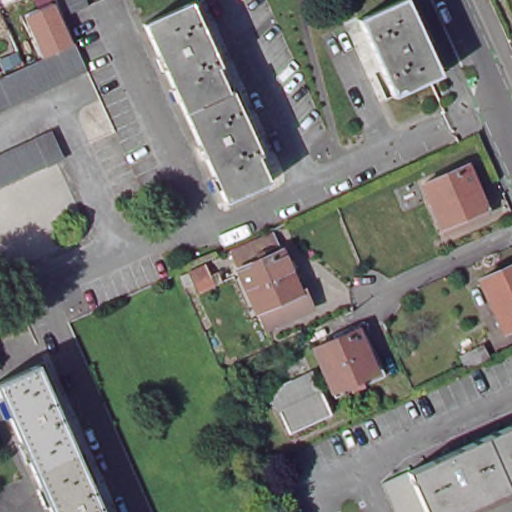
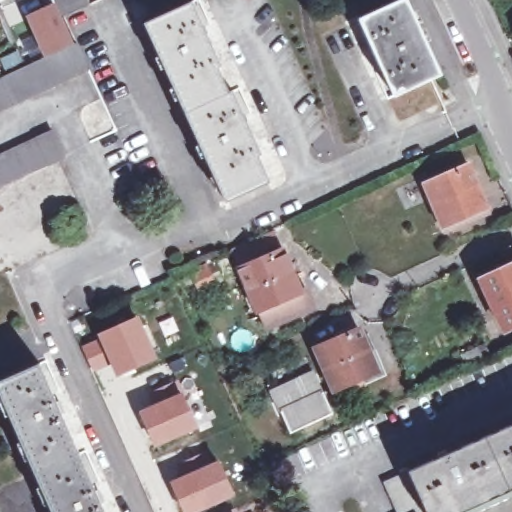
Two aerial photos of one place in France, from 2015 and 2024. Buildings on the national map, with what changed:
unchanged [(73,20),(64,0),(97,0),(100,7),(73,20)]
unchanged [(225,199),(145,22),(192,0),(193,0),(222,64),(220,66),(230,90),(233,89),(263,154),(260,155),(271,180),(225,199)]
unchanged [(444,73),(395,95),(360,17),(398,0),(410,0),(444,73)]
unchanged [(55,5),(71,40),(47,51),(31,16),(55,5)]
unchanged [(0,119),(0,87),(85,47),(87,47),(99,74),(0,119)]
unchanged [(0,154),(52,129),(65,157),(0,187),(0,154)]
unchanged [(491,208),(447,228),(429,187),(472,167),(491,208)]
unchanged [(359,198),(373,191),(380,210),(367,216),(359,198)]
unchanged [(318,320),(275,339),(250,281),(242,263),(284,245),(291,263),(292,262),(318,320)]
unchanged [(205,261),(215,282),(200,288),(190,267),(205,261)]
unchanged [(510,333),(487,282),(512,271),(512,333),(510,333)]
new [(97,337),(96,333),(139,314),(157,359),(115,376),(110,364),(92,372),(80,345),(97,337)]
unchanged [(366,331),(384,373),(342,391),(324,350),(366,331)]
unchanged [(492,354),(469,365),(463,352),(487,341),(492,354)]
unchanged [(0,380),(40,362),(57,397),(59,396),(67,412),(64,413),(97,489),(99,488),(105,502),(104,503),(107,512),(55,512),(0,388),(0,380)]
unchanged [(320,378),(338,417),(297,435),(280,397),(320,378)]
new [(153,401),(149,391),(177,379),(200,428),(155,447),(139,408),(153,401)]
unchanged [(512,430),(512,494),(472,512),(415,512),(400,479),(512,430)]
new [(236,495),(197,512),(183,512),(170,479),(219,457),(236,495)]

